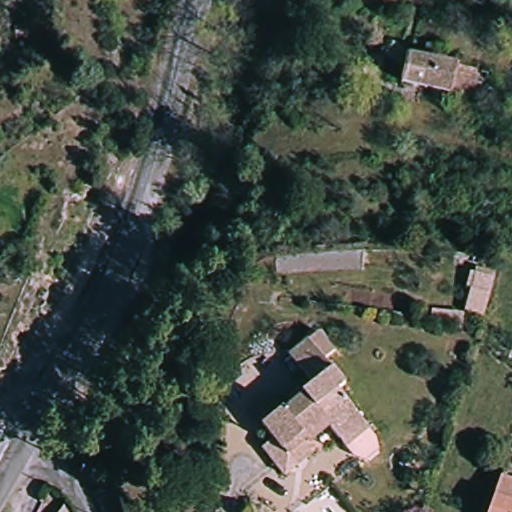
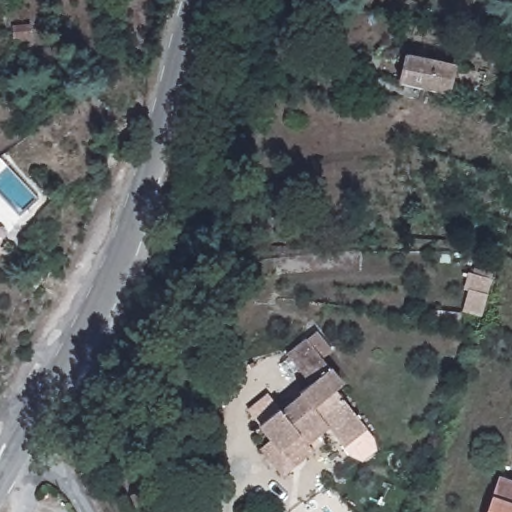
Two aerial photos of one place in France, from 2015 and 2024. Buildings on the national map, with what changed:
unchanged [(16,22),(34,22),(34,34),(15,33),(16,22)]
unchanged [(397,82),(394,81),(402,51),(470,66),(462,97),(397,82)]
unchanged [(282,473),(261,444),(270,438),(259,423),(280,408),(282,410),(303,394),(300,391),(310,383),(288,353),(309,337),(335,373),(319,429),(318,433),(306,442),(312,451),(282,473)]
unchanged [(343,445),(338,438),(327,425),(319,429),(335,373),(342,383),(336,388),(361,422),(365,428),(343,445)]
unchanged [(490,498),(498,475),(512,480),(512,512),(485,512),(490,498)]

